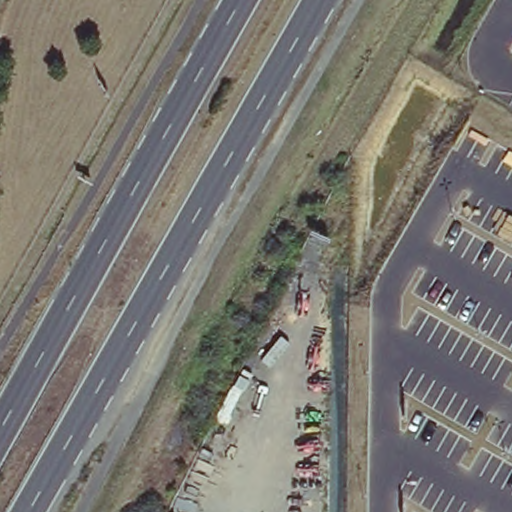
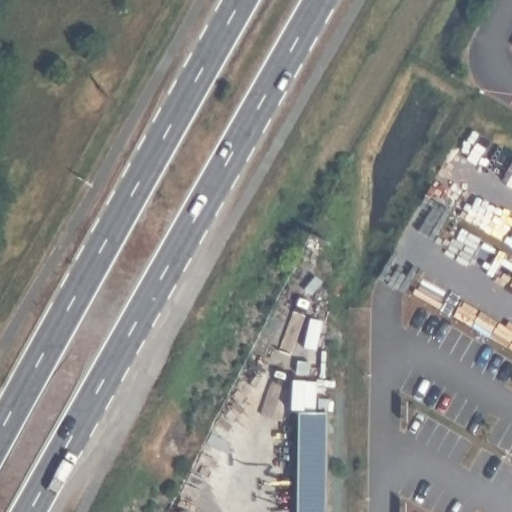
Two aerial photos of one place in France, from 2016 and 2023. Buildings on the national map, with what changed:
new [(332,405),(331,512),(301,512),(302,406),(332,405)]

